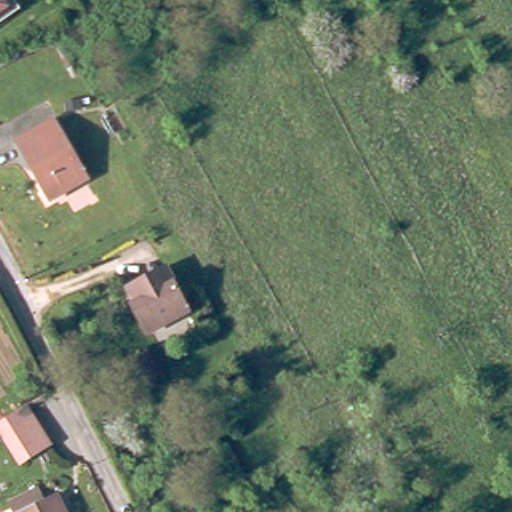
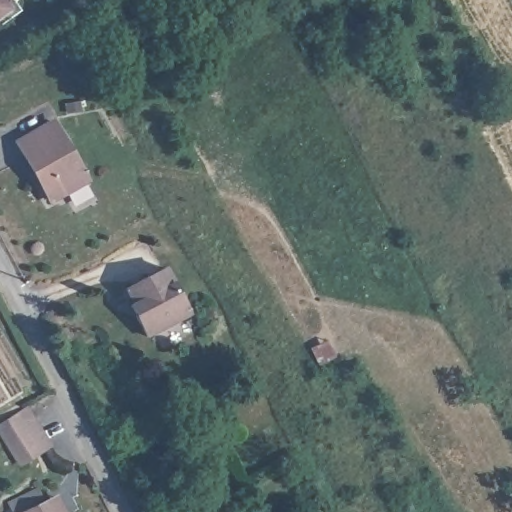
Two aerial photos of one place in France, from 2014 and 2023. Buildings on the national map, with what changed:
unchanged [(0,29),(0,0),(7,0),(13,8),(11,9),(16,17),(0,29)]
unchanged [(18,141),(54,120),(88,179),(50,199),(18,141)]
unchanged [(130,304),(134,302),(126,287),(167,266),(191,311),(146,334),(130,304)]
unchanged [(0,427),(0,421),(25,406),(49,444),(21,461),(0,427)]
unchanged [(43,488),(49,502),(63,495),(71,512),(20,512),(15,502),(43,488)]

